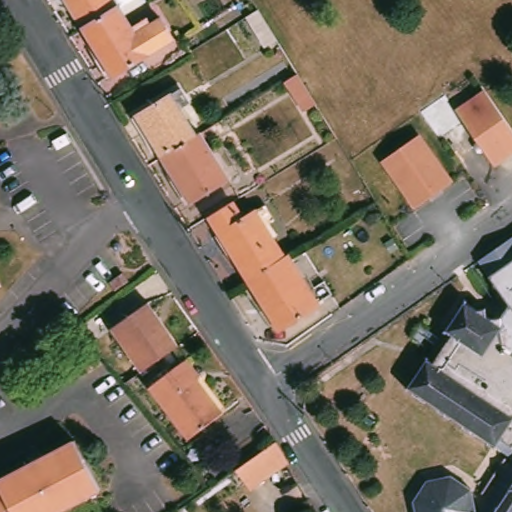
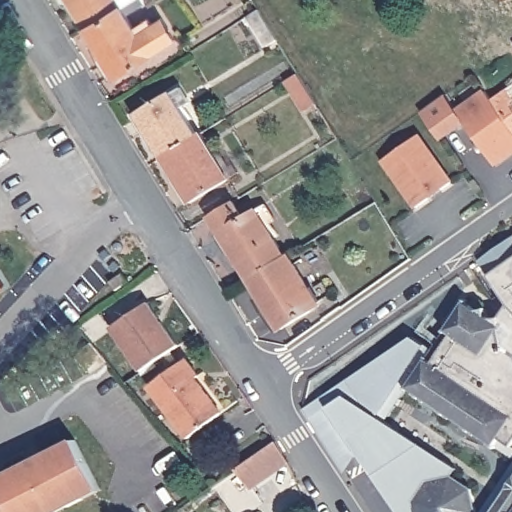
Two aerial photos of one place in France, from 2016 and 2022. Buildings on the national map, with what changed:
unchanged [(114,8),(78,30),(60,0),(127,0),(114,8)]
unchanged [(114,8),(130,35),(155,20),(169,40),(107,79),(78,30),(114,8)]
unchanged [(258,11),(277,42),(266,49),(247,19),(258,11)]
unchanged [(298,100),(286,81),(297,75),(309,94),(316,105),(305,112),(298,100)]
unchanged [(484,90),(512,131),(512,157),(494,169),(454,110),(484,90)]
unchanged [(135,115),(172,91),(182,107),(177,111),(191,136),(155,159),(143,139),(130,117),(135,115)]
unchanged [(191,136),(195,134),(223,180),(184,205),(155,159),(191,136)]
unchanged [(453,181),(413,209),(381,161),(420,135),(453,181)]
unchanged [(228,207),(237,224),(249,217),(279,264),(243,285),(204,221),(228,207)]
unchanged [(502,317),(509,304),(490,276),(479,260),(512,237),(512,357),(500,353),(495,328),(484,320),(502,317)]
unchanged [(121,269),(136,260),(143,272),(129,280),(121,269)]
unchanged [(313,311),(273,336),(243,285),(279,264),(282,262),(313,311)]
unchanged [(508,447),(496,440),(492,445),(407,389),(422,360),(431,363),(449,337),(443,327),(458,300),(495,328),(500,353),(512,357),(512,450),(508,447)]
unchanged [(110,330),(147,305),(176,346),(139,372),(110,330)]
new [(421,482),(408,501),(408,512),(396,512),(358,454),(344,472),(303,408),(413,336),(437,355),(431,363),(422,360),(407,389),(386,422),(454,467),(443,480),(421,482)]
unchanged [(186,359),(199,377),(195,380),(220,415),(188,439),(150,386),(186,359)]
unchanged [(0,478),(77,440),(101,490),(56,512),(0,512),(0,490),(4,487),(0,478)]
unchanged [(246,464),(274,444),(287,465),(250,488),(237,470),(246,464)]
unchanged [(408,512),(408,501),(421,482),(443,480),(467,492),(469,512),(408,512)]
unchanged [(494,512),(512,482),(512,512),(494,512)]

